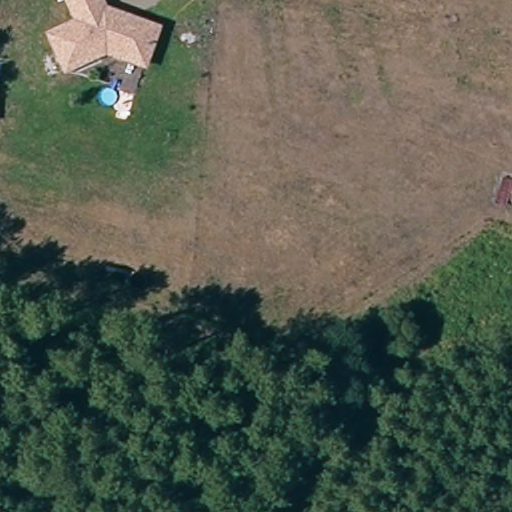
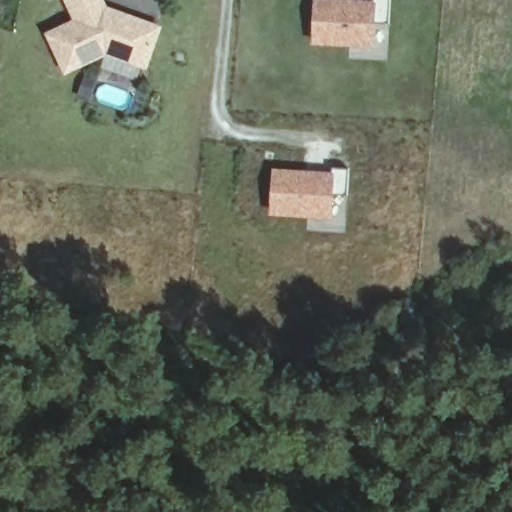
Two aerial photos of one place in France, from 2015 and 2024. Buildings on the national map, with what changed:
unchanged [(107,50),(66,69),(49,32),(77,19),(68,0),(101,0),(104,7),(126,15),(158,26),(145,64),(107,50)]
new [(375,21),(373,48),(311,44),(314,0),(389,0),(387,21),(375,21)]
new [(330,171),(330,167),(347,168),(346,194),(332,193),(331,219),(269,215),(272,168),(330,171)]

